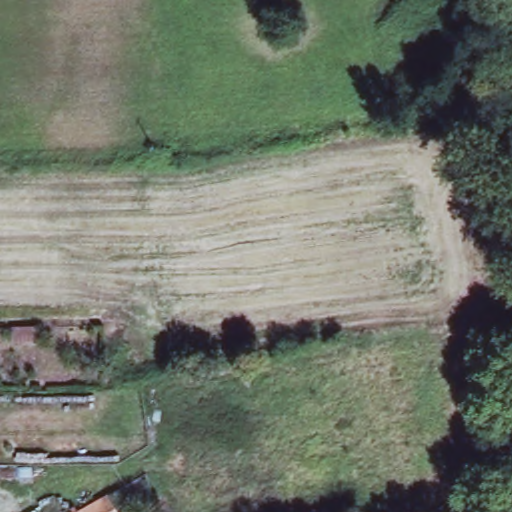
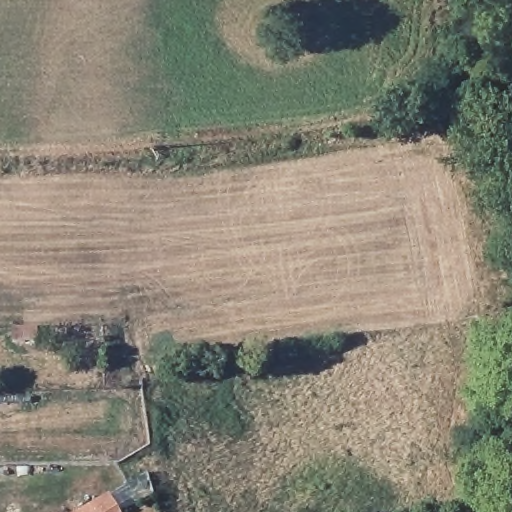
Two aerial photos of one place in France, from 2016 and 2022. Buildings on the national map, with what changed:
unchanged [(42,326),(41,343),(15,344),(15,326),(42,326)]
unchanged [(122,512),(85,512),(112,496),(122,512)]

